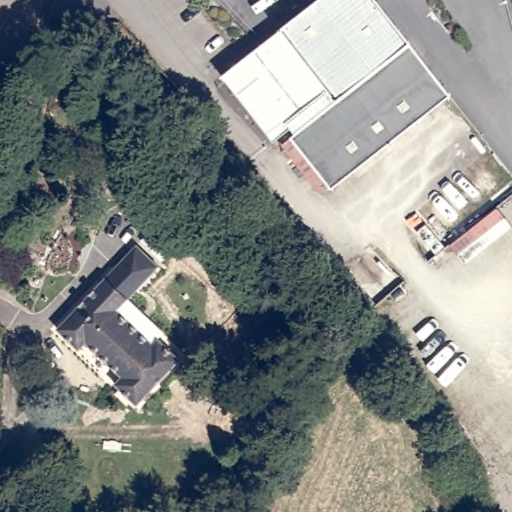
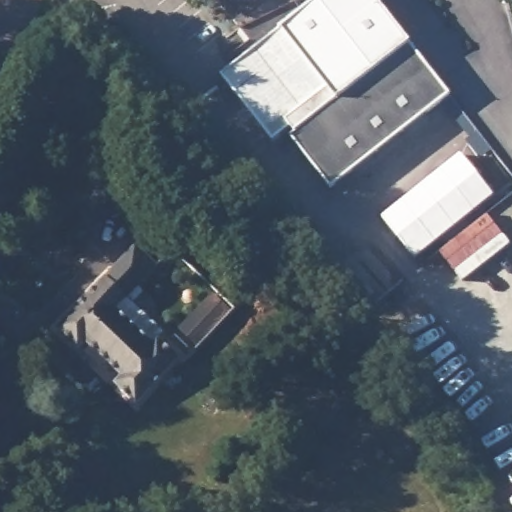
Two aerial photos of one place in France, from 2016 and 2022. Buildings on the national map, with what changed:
unchanged [(314,0),(377,0),(448,91),(331,183),(289,134),(293,130),(291,125),(273,137),(240,94),(222,73),(257,45),(314,0)]
new [(458,155),(493,196),(415,260),(381,218),(458,155)]
unchanged [(136,409),(109,387),(111,383),(82,355),(77,357),(52,333),(132,249),(154,270),(115,311),(150,344),(154,340),(179,363),(136,409)]

